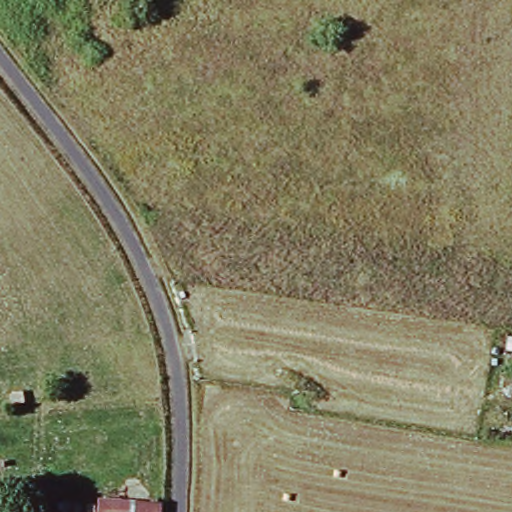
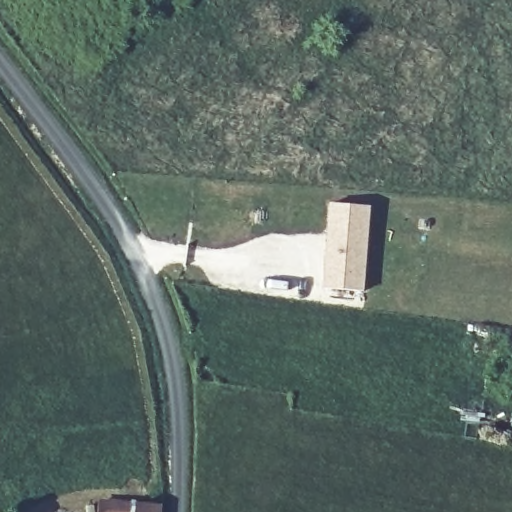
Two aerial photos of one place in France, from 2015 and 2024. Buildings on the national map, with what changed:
new [(361,295),(323,292),(329,207),(367,210),(361,295)]
unchanged [(97,511),(121,512),(97,512),(97,511)]

